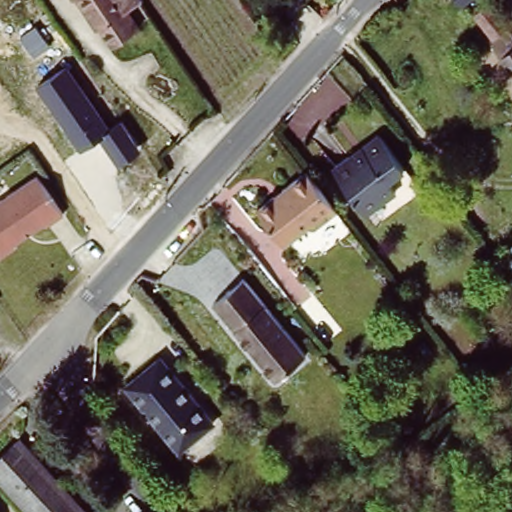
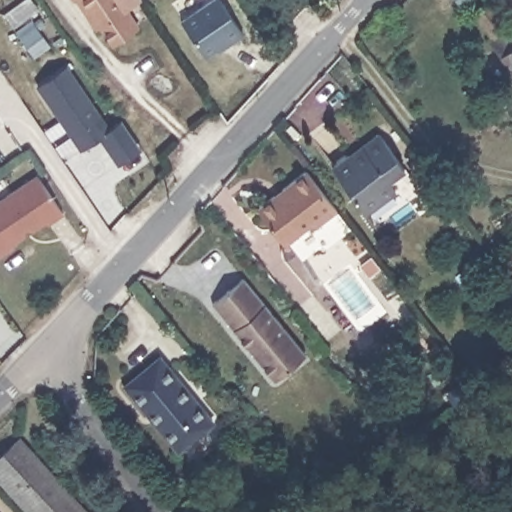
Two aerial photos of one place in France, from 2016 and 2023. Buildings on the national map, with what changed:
unchanged [(142,2),(125,13),(135,28),(110,44),(100,28),(95,30),(83,11),(80,12),(72,0),(141,0),(142,2)]
new [(220,52),(218,50),(208,57),(181,19),(209,0),(223,0),(248,33),(220,52)]
unchanged [(455,3),(453,0),(459,0),(455,3)]
unchanged [(496,55),(468,20),(485,7),(512,42),(512,83),(492,58),(496,55)]
unchanged [(67,66),(110,127),(120,120),(141,152),(120,167),(100,140),(81,152),(37,87),(67,66)]
unchanged [(383,178),(392,190),(363,213),(330,169),(375,135),(399,167),(383,178)]
unchanged [(64,216),(48,226),(46,223),(15,245),(16,248),(0,259),(0,200),(37,174),(64,216)]
unchanged [(315,234),(307,231),(285,248),(256,211),(305,174),(338,216),(315,234)]
unchanged [(512,246),(512,261),(505,250),(512,246)]
unchanged [(242,280),(303,356),(272,380),(211,304),(242,280)]
unchanged [(160,355),(211,419),(176,448),(123,384),(160,355)]
unchanged [(16,442),(80,512),(20,512),(0,490),(0,457),(16,442)]

